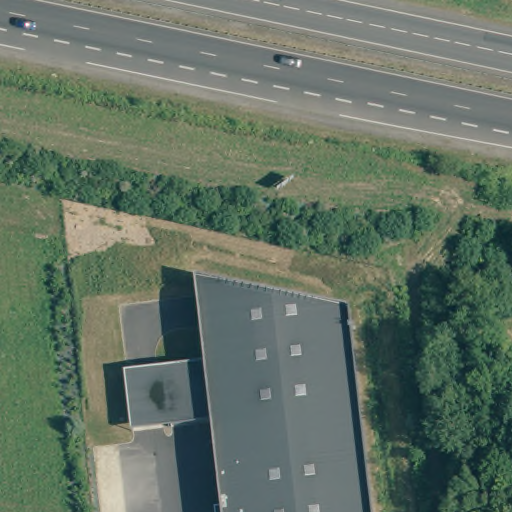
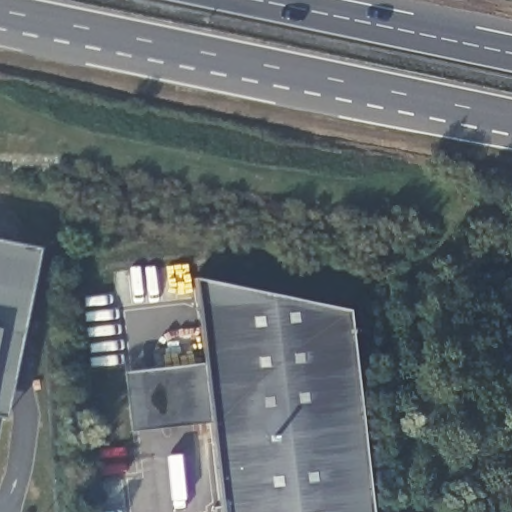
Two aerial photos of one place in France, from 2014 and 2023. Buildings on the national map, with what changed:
new [(38,249),(2,419),(0,418),(0,242),(38,249)]
unchanged [(124,373),(191,366),(204,365),(192,278),(347,311),(370,512),(213,512),(212,508),(220,507),(209,422),(131,431),(124,373)]

